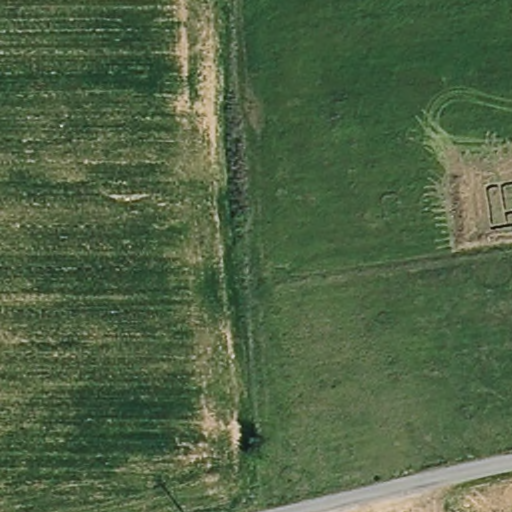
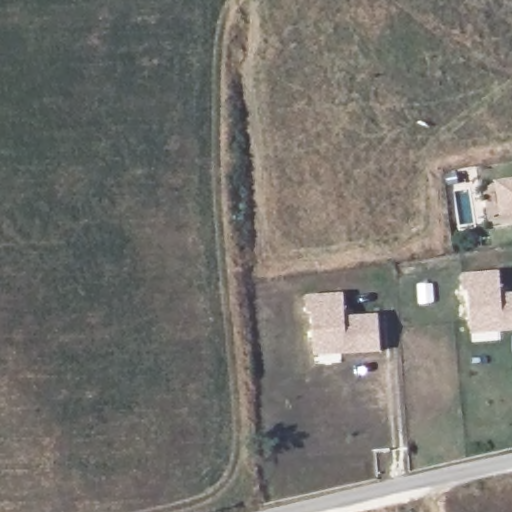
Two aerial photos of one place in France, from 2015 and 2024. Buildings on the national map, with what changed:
new [(512,179),(512,216),(501,217),(495,182),(512,179)]
new [(469,293),(463,293),(462,275),(500,272),(501,295),(512,294),(512,330),(472,334),(469,293)]
new [(314,357),(313,315),(307,315),(305,296),(344,295),(345,317),(378,316),(381,352),(314,357)]

